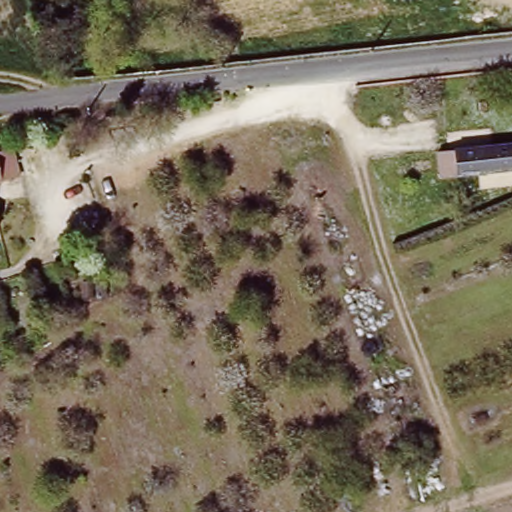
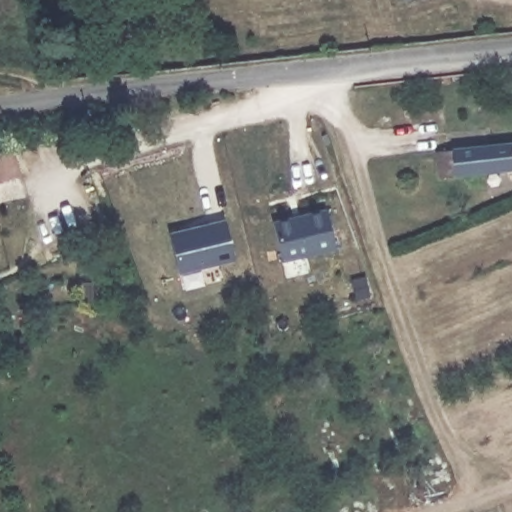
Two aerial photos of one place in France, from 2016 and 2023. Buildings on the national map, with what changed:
unchanged [(512,171),(444,176),(444,164),(431,163),(431,151),(487,144),(512,146),(512,171)]
unchanged [(10,148),(19,179),(0,184),(0,151),(10,148)]
new [(335,248),(283,260),(271,220),(288,215),(289,219),(326,209),(335,248)]
new [(224,222),(233,261),(178,274),(168,235),(224,222)]

